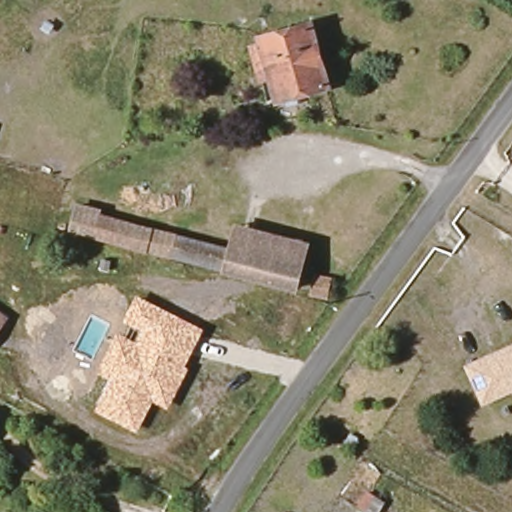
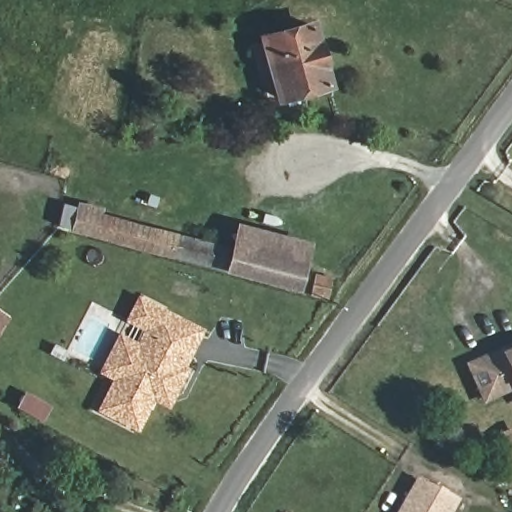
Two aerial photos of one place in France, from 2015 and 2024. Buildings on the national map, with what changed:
unchanged [(326,89),(275,100),(260,36),(311,25),(326,89)]
unchanged [(143,255),(87,241),(69,238),(75,201),(101,207),(100,215),(94,214),(149,228),(175,235),(233,249),(227,274),(170,260),(143,255)]
unchanged [(233,249),(237,229),(304,245),(299,266),(233,249)]
unchanged [(226,279),(227,274),(233,249),(299,266),(291,295),(226,279)]
unchanged [(327,293),(316,290),(321,270),(333,271),(327,293)]
unchanged [(205,328),(186,365),(190,366),(169,408),(154,401),(139,432),(96,411),(111,380),(97,372),(119,333),(135,341),(141,329),(124,320),(137,295),(205,328)]
unchanged [(510,393),(480,405),(463,364),(512,344),(512,396),(510,393)]
new [(508,472),(493,435),(512,428),(512,471),(508,472)]
new [(458,500),(452,512),(396,512),(415,476),(458,500)]

